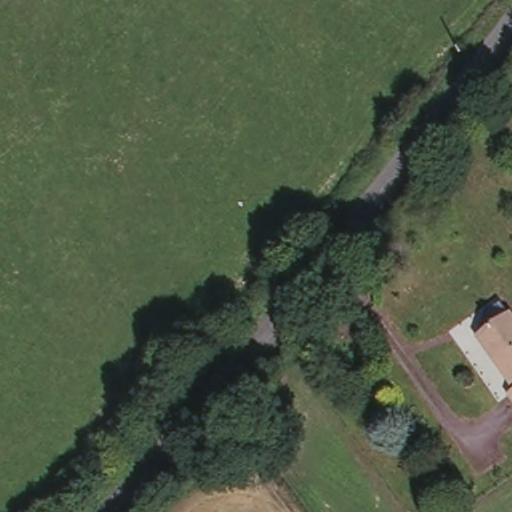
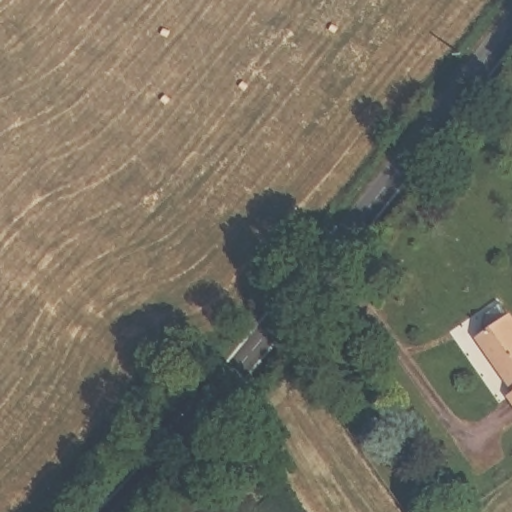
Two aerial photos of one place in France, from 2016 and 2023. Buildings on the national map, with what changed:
unchanged [(507,312),(512,320),(512,391),(475,338),(507,312)]
unchanged [(506,398),(512,393),(512,407),(506,398)]

